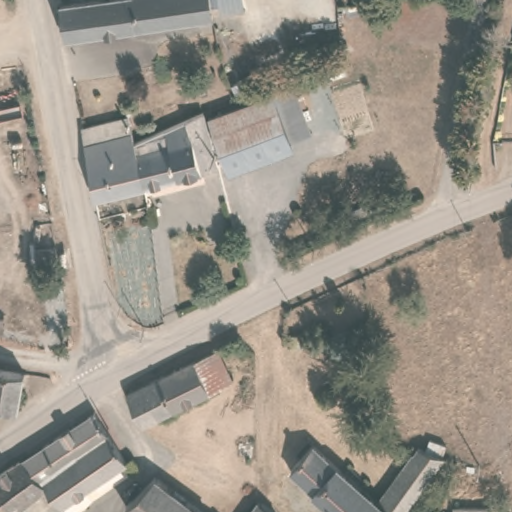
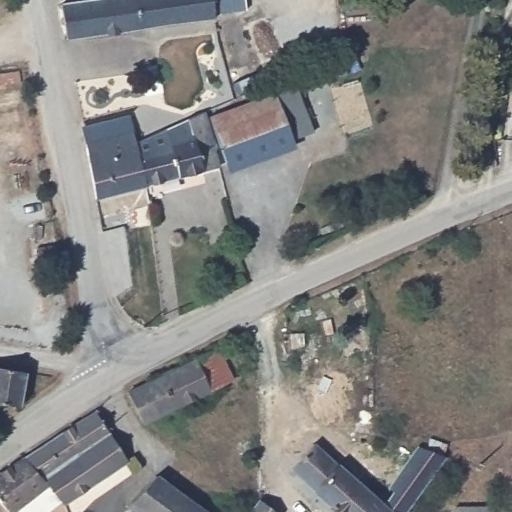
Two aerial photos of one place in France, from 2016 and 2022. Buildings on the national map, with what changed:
unchanged [(208,0),(211,26),(64,46),(57,8),(121,0),(208,0)]
unchanged [(269,101),(286,144),(220,168),(205,125),(269,101)]
unchanged [(120,121),(119,115),(126,113),(137,144),(197,118),(212,173),(193,177),(139,193),(90,206),(77,130),(120,121)]
unchanged [(59,268),(36,271),(34,254),(56,250),(59,268)]
unchanged [(301,336),(302,349),(287,349),(286,345),(278,345),(279,336),(301,336)]
unchanged [(209,355),(219,350),(232,384),(224,388),(142,426),(128,394),(209,355)]
unchanged [(22,407),(0,404),(0,376),(25,380),(22,407)]
unchanged [(20,463),(92,415),(127,464),(60,510),(45,492),(20,463)]
unchanged [(407,512),(384,512),(373,503),(413,458),(418,452),(421,453),(424,442),(441,446),(438,458),(451,463),(407,512)]
unchanged [(284,473),(306,447),(373,503),(384,512),(329,512),(284,473)]
unchanged [(20,463),(45,492),(18,512),(1,512),(0,510),(0,477),(20,463)]
unchanged [(201,512),(127,512),(126,511),(155,478),(201,512)]
unchanged [(257,504),(268,512),(251,512),(257,504)]

